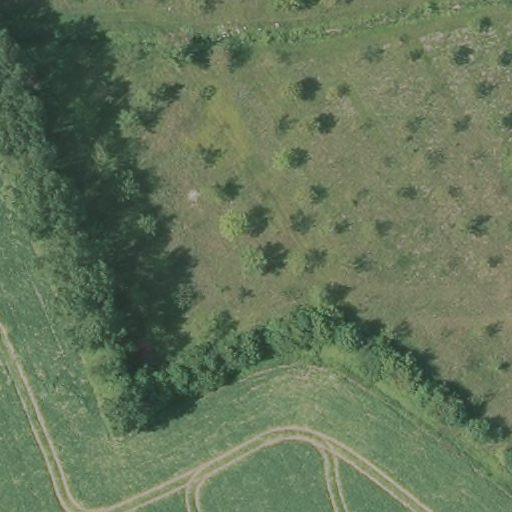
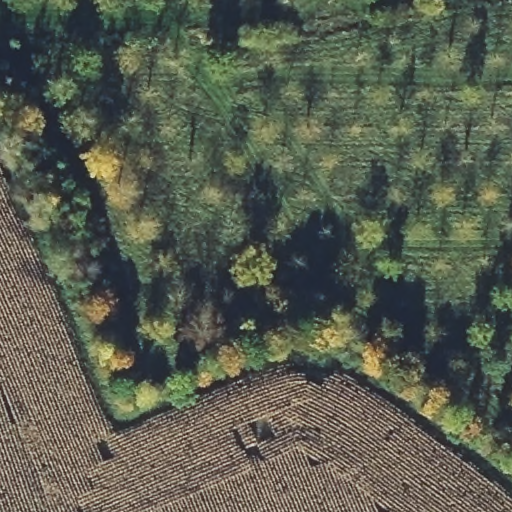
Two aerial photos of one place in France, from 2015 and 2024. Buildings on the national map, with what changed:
[]

